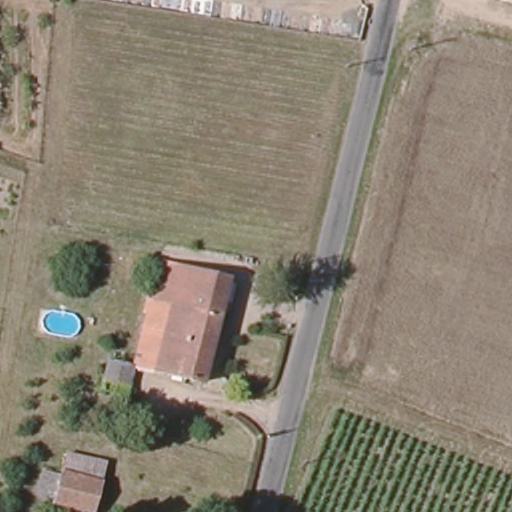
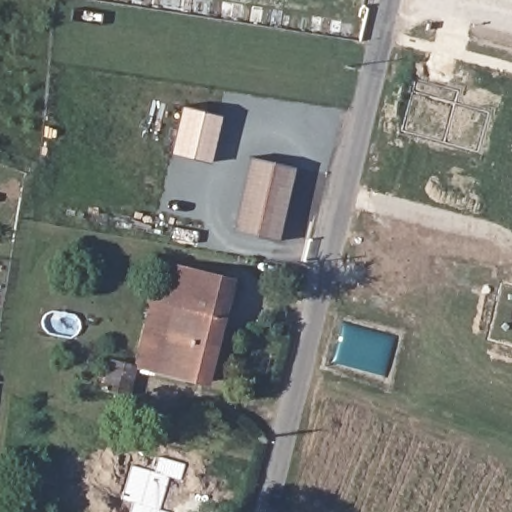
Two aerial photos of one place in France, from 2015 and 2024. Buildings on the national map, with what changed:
new [(219,115),(207,161),(167,152),(179,106),(219,115)]
new [(277,241),(231,230),(247,157),(293,166),(277,241)]
unchanged [(204,384),(180,379),(188,334),(165,329),(150,326),(165,263),(232,281),(206,385),(204,384)]
unchanged [(150,326),(165,329),(188,334),(180,379),(140,369),(150,326)]
unchanged [(132,399),(105,393),(112,362),(140,369),(132,399)]
new [(101,482),(65,474),(64,479),(57,500),(38,494),(44,470),(59,474),(61,468),(65,451),(107,461),(103,484),(101,482)]
unchanged [(101,482),(103,484),(96,512),(87,512),(57,505),(64,479),(65,474),(101,482)]

